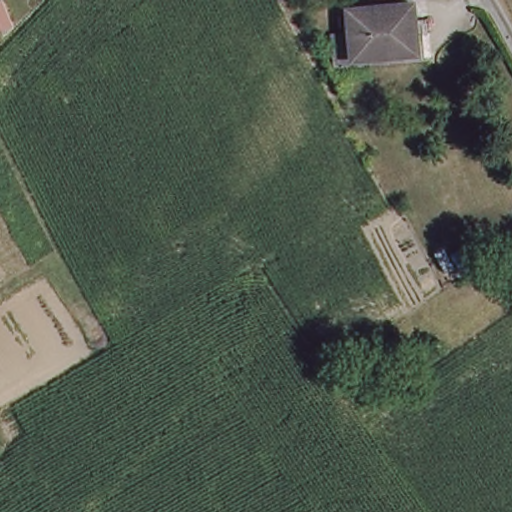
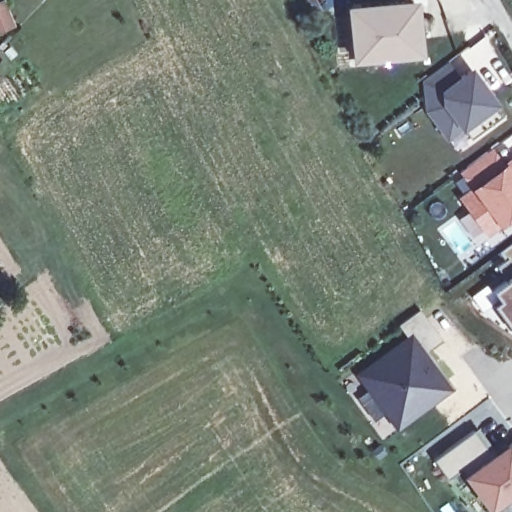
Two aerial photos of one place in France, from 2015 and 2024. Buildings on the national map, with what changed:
new [(13,25),(0,30),(0,3),(3,1),(13,25)]
unchanged [(342,72),(341,67),(344,67),(343,53),(358,50),(354,12),(419,6),(422,38),(424,56),(413,57),(359,62),(359,70),(342,72)]
new [(457,77),(470,68),(502,114),(469,135),(450,110),(434,120),(422,104),(423,77),(447,61),(457,77)]
new [(477,185),(464,166),(490,149),(503,167),(512,160),(512,212),(488,230),(463,195),(477,185)]
new [(491,287),(505,277),(496,263),(504,257),(499,249),(512,240),(512,319),(491,287)]
new [(393,418),(359,370),(407,336),(396,321),(417,306),(439,337),(424,347),(434,361),(428,365),(442,385),(393,418)]
new [(459,467),(445,476),(431,457),(472,428),(484,446),(489,444),(494,451),(512,439),(512,488),(487,506),(459,467)]

